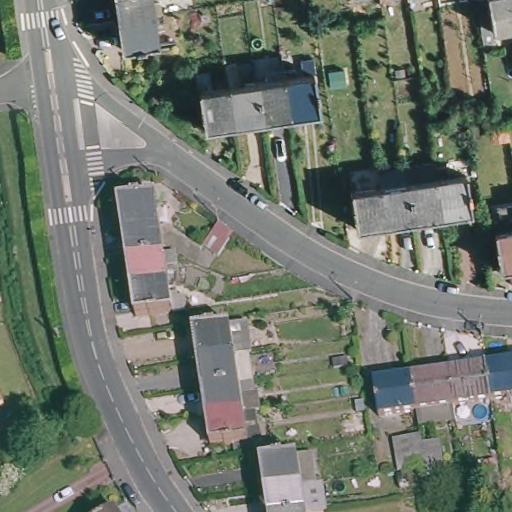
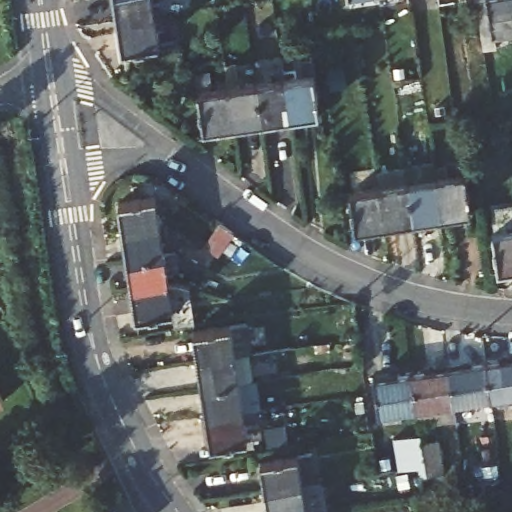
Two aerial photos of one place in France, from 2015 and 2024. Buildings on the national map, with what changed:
unchanged [(155,16),(118,21),(115,0),(153,0),(155,16)]
unchanged [(471,2),(470,0),(480,0),(471,2)]
unchanged [(512,28),(499,30),(499,33),(489,34),(484,0),(512,0),(512,28)]
unchanged [(155,16),(158,31),(172,29),(173,41),(121,48),(118,21),(155,16)]
unchanged [(278,81),(274,56),(286,55),(290,80),(308,77),(306,62),(317,61),(324,114),(296,117),(266,122),(259,84),(278,81)]
unchanged [(266,122),(238,125),(208,130),(199,76),(213,73),(216,90),(233,87),(228,63),(243,61),(246,86),(259,84),(266,122)]
unchanged [(441,220),(413,225),(405,171),(433,167),(434,172),(441,220)]
unchanged [(447,170),(448,181),(467,179),(472,216),(441,220),(434,172),(447,170)]
unchanged [(413,225),(385,229),(379,191),(377,175),(405,171),(413,225)]
unchanged [(385,229),(356,233),(348,185),(359,183),(361,194),(379,191),(385,229)]
unchanged [(123,231),(119,205),(156,199),(160,225),(123,231)]
unchanged [(221,221),(235,231),(220,255),(205,245),(221,221)]
unchanged [(165,254),(163,254),(128,258),(123,231),(160,225),(165,254)]
unchanged [(499,237),(512,235),(512,273),(504,274),(499,237)]
unchanged [(148,286),(132,288),(128,258),(163,254),(165,254),(175,252),(176,261),(166,262),(169,282),(148,286)]
unchanged [(148,286),(169,282),(172,297),(183,295),(184,309),(136,316),(132,288),(148,286)]
unchanged [(198,330),(253,322),(257,352),(254,352),(203,360),(198,330)]
unchanged [(259,381),(207,388),(203,360),(254,352),(259,381)]
unchanged [(512,399),(498,402),(492,364),(512,361),(512,399)]
unchanged [(469,363),(470,367),(492,364),(498,402),(460,407),(454,366),(469,363)]
unchanged [(441,372),(441,368),(454,366),(460,407),(423,412),(418,375),(441,372)]
unchanged [(395,375),(396,378),(418,375),(423,412),(385,418),(379,377),(395,375)]
unchanged [(216,448),(211,417),(207,388),(259,381),(261,392),(264,392),(266,410),(262,410),(264,426),(266,440),(216,448)]
unchanged [(6,406),(0,409),(0,394),(6,406)]
unchanged [(444,470),(428,472),(427,465),(421,466),(401,468),(396,436),(422,432),(423,440),(439,437),(444,470)]
unchanged [(265,460),(313,452),(317,482),(269,489),(265,460)]
unchanged [(328,509),(309,512),(273,512),(269,489),(317,482),(324,481),(328,509)]
unchanged [(119,497),(128,512),(95,512),(115,500),(119,497)]

